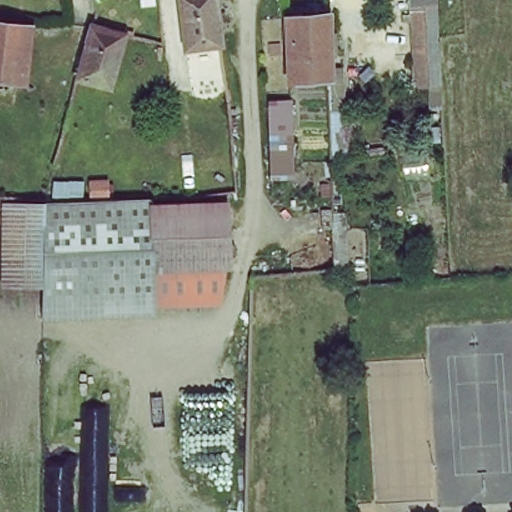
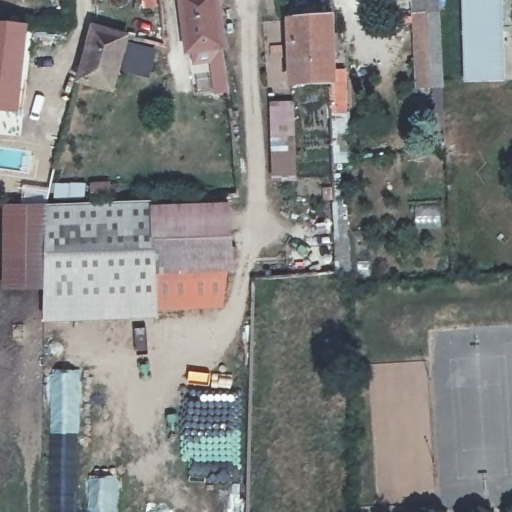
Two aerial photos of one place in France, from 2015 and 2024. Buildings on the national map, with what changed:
unchanged [(215,45),(194,45),(191,14),(189,0),(224,0),(225,11),(231,69),(235,101),(220,102),(217,70),(215,45)]
unchanged [(395,0),(435,0),(435,6),(444,5),(449,85),(416,87),(412,15),(394,14),(395,0)]
new [(504,81),(462,82),(460,0),(502,0),(504,81)]
unchanged [(326,85),(288,89),(282,36),(283,17),(325,14),(326,85)]
unchanged [(0,27),(23,28),(17,84),(15,108),(0,106),(0,27)]
unchanged [(80,83),(87,55),(93,31),(124,40),(120,61),(112,90),(80,83)]
unchanged [(345,72),(350,164),(330,165),(325,89),(335,89),(335,72),(345,72)]
unchanged [(143,119),(145,101),(154,101),(153,120),(143,119)]
unchanged [(299,182),(272,182),(268,104),(293,102),(299,182)]
unchanged [(154,210),(153,277),(152,305),(42,314),(42,285),(42,212),(44,212),(155,205),(154,210)]
unchanged [(226,210),(227,279),(153,277),(154,210),(226,210)]
unchanged [(1,286),(0,213),(42,212),(42,285),(1,286)]

